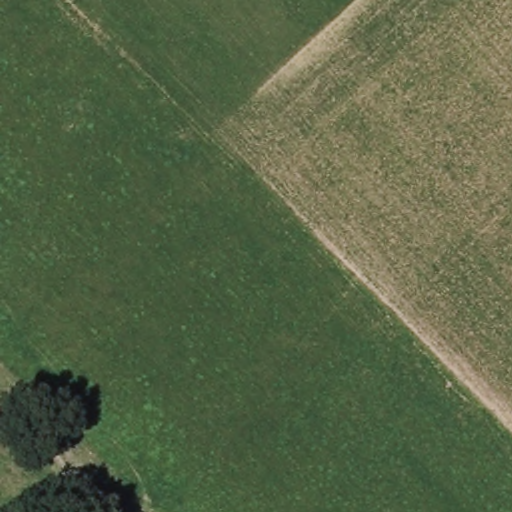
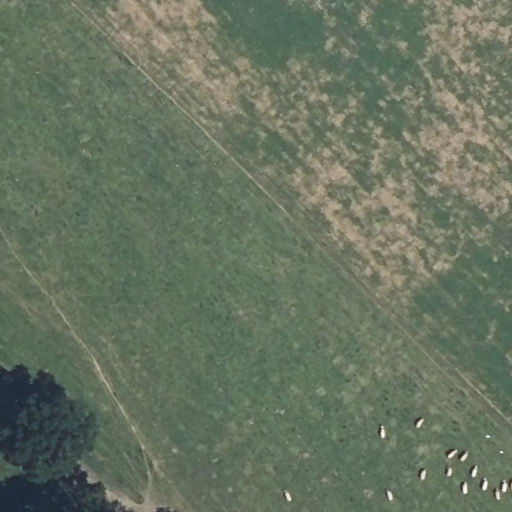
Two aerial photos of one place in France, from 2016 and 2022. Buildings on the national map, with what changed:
[]

